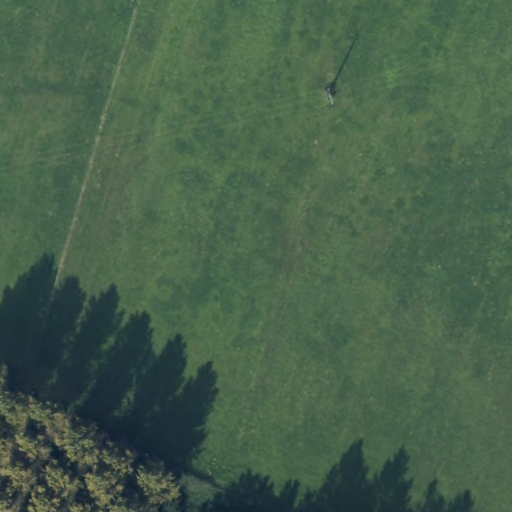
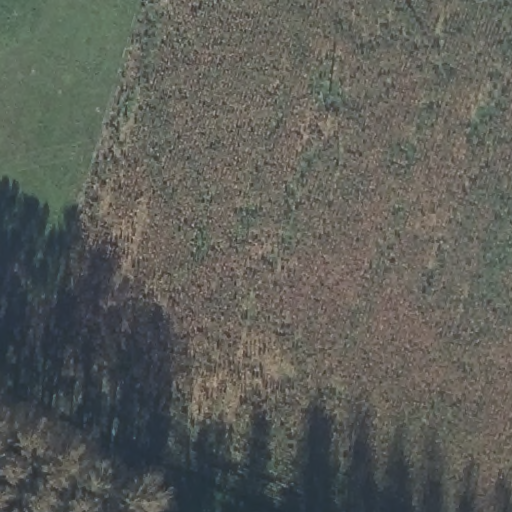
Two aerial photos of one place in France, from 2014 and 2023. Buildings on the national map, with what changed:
[]

